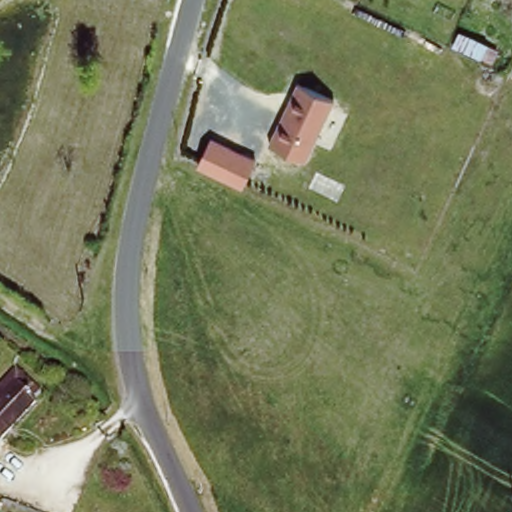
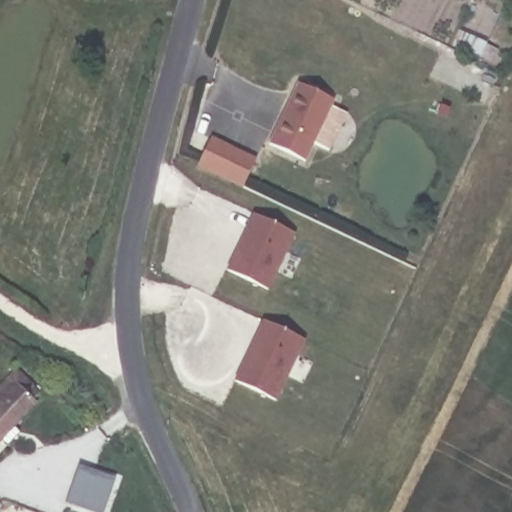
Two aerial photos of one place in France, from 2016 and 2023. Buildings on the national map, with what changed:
unchanged [(335,101),(305,161),(268,144),(296,83),(335,101)]
unchanged [(197,165),(212,136),(257,158),(242,188),(197,165)]
new [(269,291),(225,269),(254,214),(297,234),(269,291)]
new [(277,402),(236,382),(264,320),(307,340),(277,402)]
unchanged [(9,369),(31,392),(23,399),(30,406),(0,439),(0,380),(9,369)]
new [(105,512),(95,512),(67,502),(80,466),(117,478),(105,512)]

